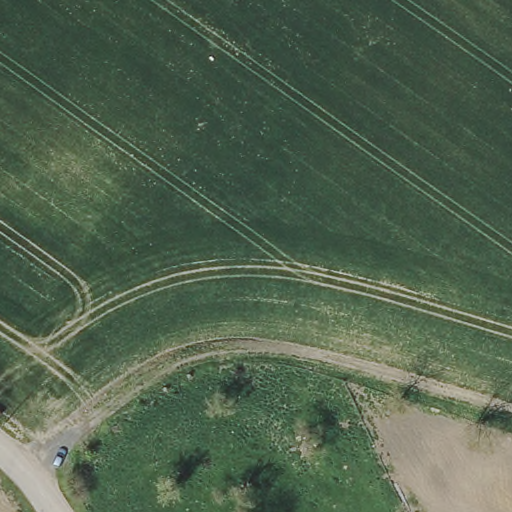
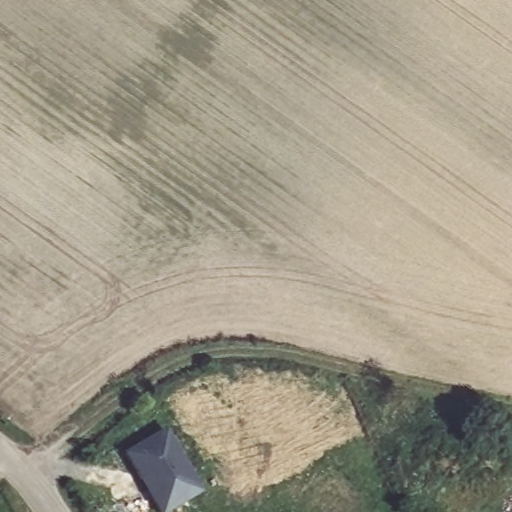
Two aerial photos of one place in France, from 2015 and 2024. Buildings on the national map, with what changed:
new [(204,493),(171,512),(155,512),(122,456),(166,430),(204,493)]

